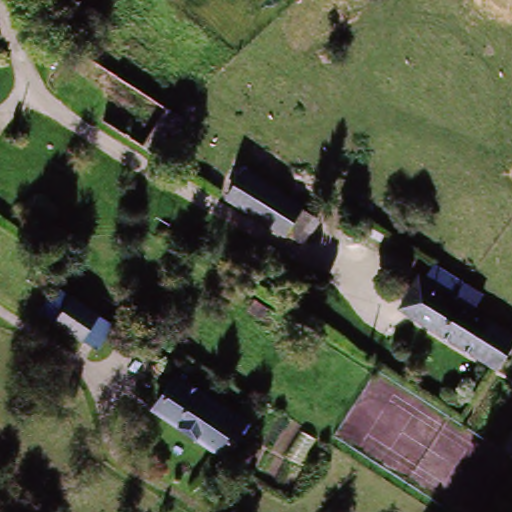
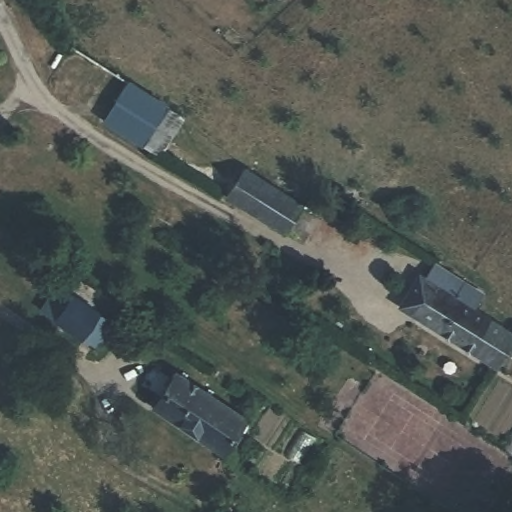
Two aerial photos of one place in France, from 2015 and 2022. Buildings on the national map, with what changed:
new [(160,155),(145,146),(103,122),(129,79),(170,106),(185,116),(160,155)]
demolished [(185,116),(160,155),(145,146),(170,106),(185,116)]
unchanged [(284,234),(227,197),(246,168),(303,206),(284,234)]
unchanged [(415,317),(400,307),(420,276),(436,285),(437,287),(442,280),(453,287),(449,294),(457,299),(467,283),(483,293),(473,309),(512,335),(512,341),(495,368),(415,317)]
unchanged [(41,310),(59,285),(113,323),(95,348),(41,310)]
unchanged [(218,453),(150,408),(173,373),(241,418),(231,433),(239,438),(230,450),(223,445),(218,453)]

